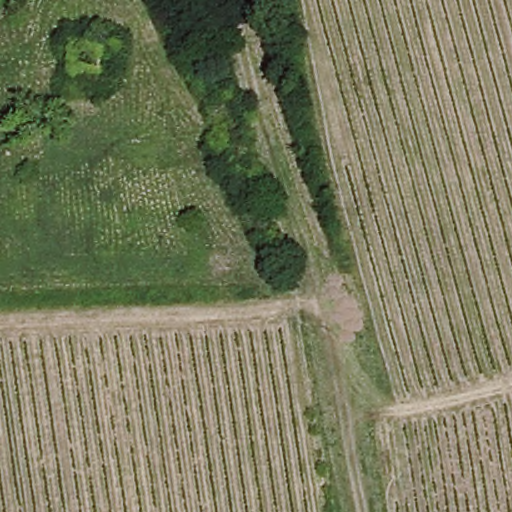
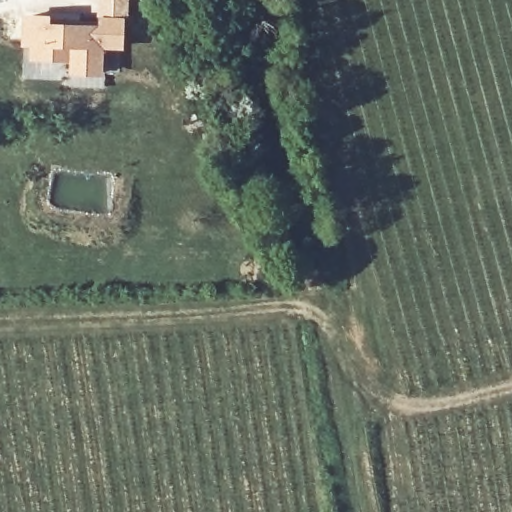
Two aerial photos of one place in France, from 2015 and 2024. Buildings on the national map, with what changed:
new [(22,15),(49,16),(48,23),(102,26),(101,76),(69,75),(69,61),(28,60),(29,45),(21,45),(22,15)]

